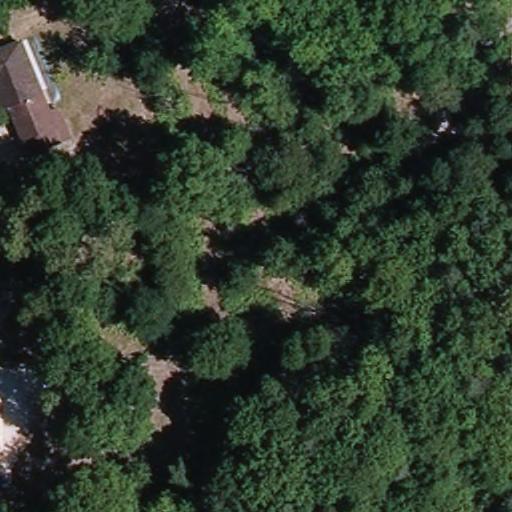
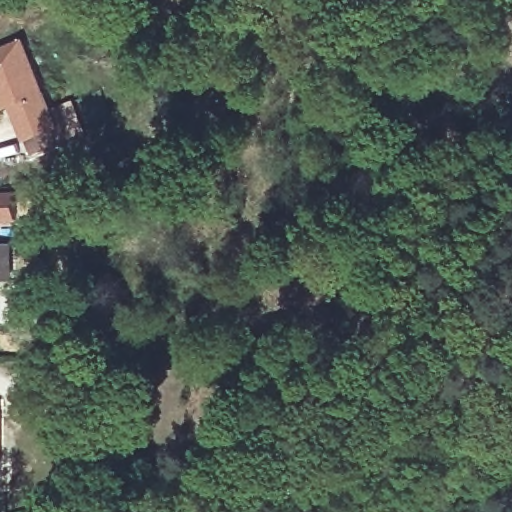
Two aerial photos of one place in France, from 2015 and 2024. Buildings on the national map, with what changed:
unchanged [(28,117),(21,103),(17,101),(9,79),(0,82),(0,56),(37,44),(59,105),(66,126),(34,136),(28,117)]
new [(15,226),(0,226),(0,191),(14,191),(15,226)]
unchanged [(0,278),(0,241),(13,241),(13,279),(0,278)]
unchanged [(0,468),(0,401),(13,402),(7,469),(0,468)]

